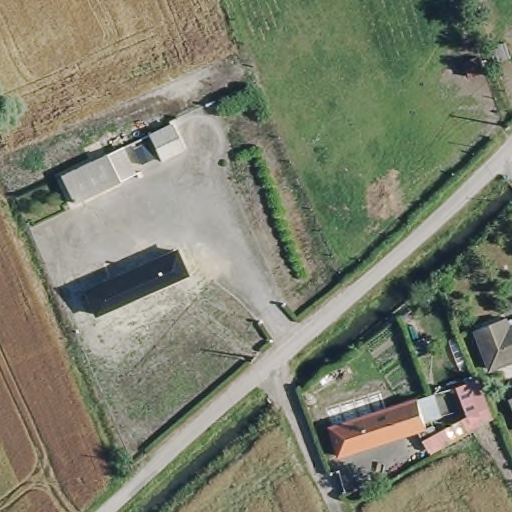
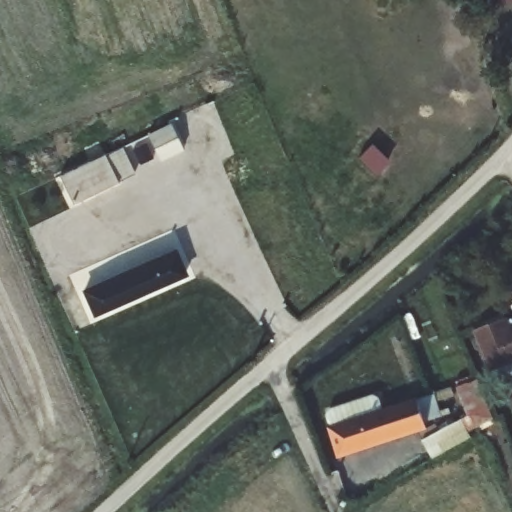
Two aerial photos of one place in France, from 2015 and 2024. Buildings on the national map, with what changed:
unchanged [(150,133),(174,121),(185,149),(162,159),(150,133)]
unchanged [(126,187),(85,203),(67,168),(109,148),(126,187)]
unchanged [(77,279),(96,271),(107,284),(194,247),(204,272),(192,277),(94,318),(77,279)]
unchanged [(497,370),(481,326),(508,314),(512,323),(512,363),(497,370)]
unchanged [(486,414),(429,451),(421,439),(462,412),(452,382),(470,376),(486,414)]
unchanged [(430,396),(440,422),(352,451),(352,456),(340,459),(329,429),(430,396)]

